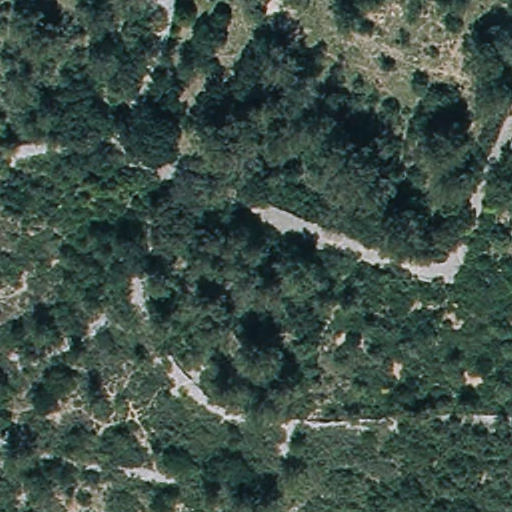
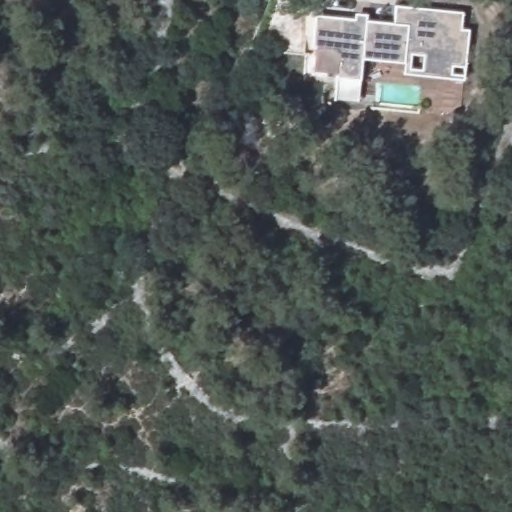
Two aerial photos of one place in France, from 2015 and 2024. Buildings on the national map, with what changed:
new [(404,62),(362,59),(359,102),(332,100),(335,74),(314,72),(316,48),(313,47),(315,17),(354,20),(355,16),(367,16),(366,21),(394,24),(395,7),(462,13),(461,30),(469,31),(464,80),(403,74),(404,62)]

